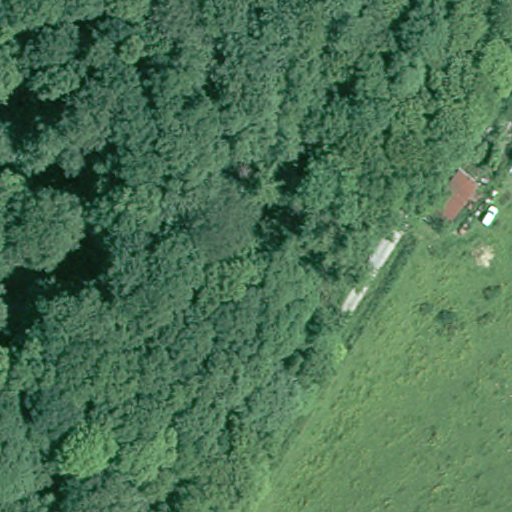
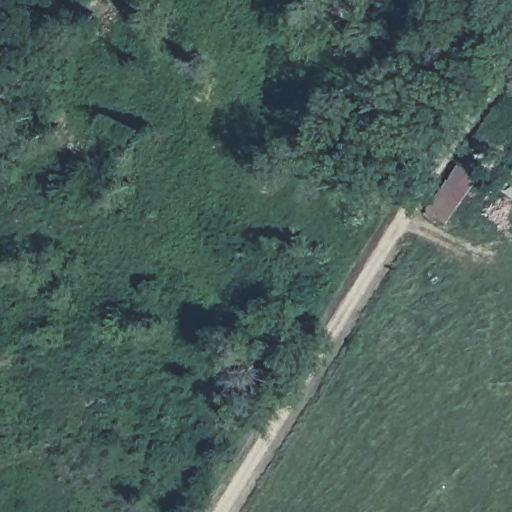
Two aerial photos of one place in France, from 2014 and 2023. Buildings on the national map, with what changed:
unchanged [(487,177),(453,226),(443,219),(435,212),(457,182),(469,164),(487,177)]

